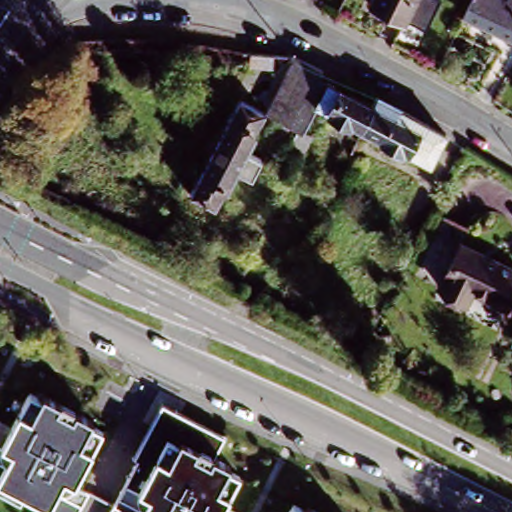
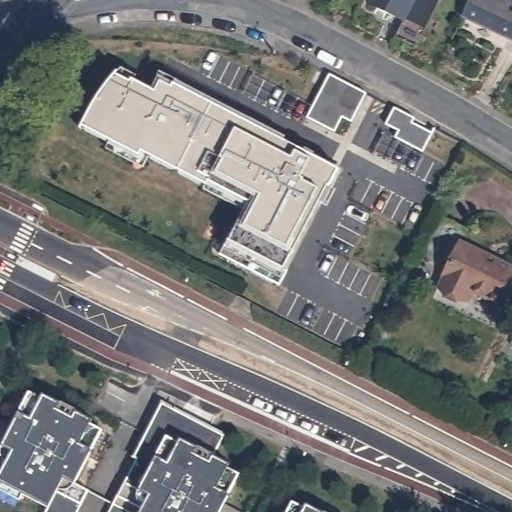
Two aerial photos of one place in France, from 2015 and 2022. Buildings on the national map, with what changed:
unchanged [(366,4),(369,0),(414,0),(405,19),(402,23),(400,22),(366,4)]
unchanged [(512,38),(465,14),(471,0),(512,0),(512,38)]
demolished [(295,129),(290,126),(283,123),(275,136),(262,129),(269,117),(267,115),(273,101),(270,100),(293,55),(324,70),(319,81),(327,85),(317,108),(316,109),(305,133),(312,137),(302,157),(299,155),(285,149),(295,129)]
new [(367,92),(352,121),(343,116),(335,133),(305,117),(330,73),(367,92)]
new [(130,82),(132,79),(151,90),(157,79),(171,86),(173,82),(340,169),(284,269),(230,240),(250,203),(142,151),(140,156),(81,126),(93,101),(102,89),(115,74),(130,82)]
demolished [(376,98),(376,97),(377,97),(398,108),(397,110),(445,134),(428,166),(360,132),(360,130),(317,108),(327,85),(371,108),(376,99),(376,98)]
demolished [(261,112),(240,149),(256,158),(245,177),(230,169),(208,210),(182,196),(235,97),(261,112)]
new [(415,116),(412,122),(434,133),(423,152),(395,138),(399,131),(385,124),(393,107),(415,116)]
unchanged [(512,266),(512,294),(506,307),(467,289),(463,296),(439,285),(460,241),(512,266)]
unchanged [(44,395),(94,421),(91,425),(102,432),(75,483),(90,493),(80,512),(46,512),(48,509),(24,497),(19,504),(0,492),(0,446),(30,394),(40,401),(44,395)]
unchanged [(215,457),(229,465),(227,469),(239,475),(220,512),(110,512),(162,406),(225,437),(215,457)]
unchanged [(286,512),(291,503),(313,512),(286,512)]

